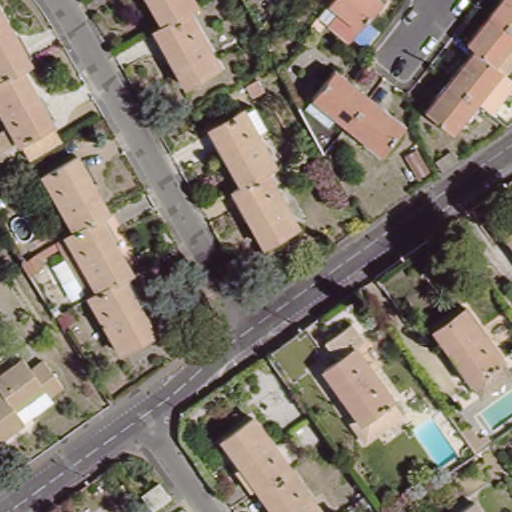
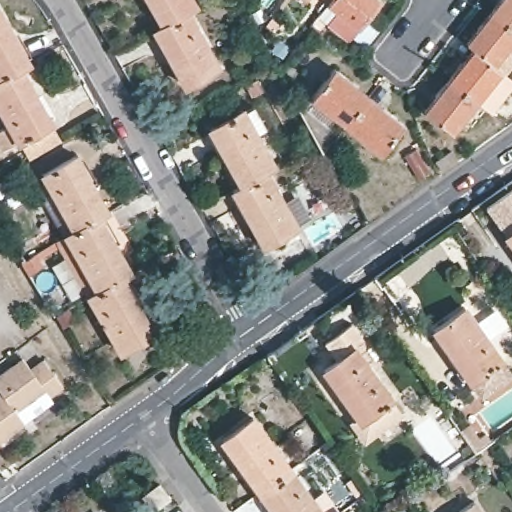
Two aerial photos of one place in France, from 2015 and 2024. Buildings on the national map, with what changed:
unchanged [(188,0),(194,10),(187,14),(160,28),(145,0),(188,0)]
unchanged [(330,0),(328,2),(325,0),(330,0)]
unchanged [(328,2),(330,0),(378,0),(379,0),(358,26),(350,37),(333,23),(342,13),(328,2)]
unchanged [(512,0),(512,25),(495,11),(504,0),(512,0)]
unchanged [(33,59),(24,64),(0,78),(0,2),(33,59)]
unchanged [(477,48),(470,42),(495,11),(512,25),(512,46),(498,65),(477,48)]
unchanged [(217,70),(180,90),(150,34),(160,28),(187,14),(217,70)]
unchanged [(498,65),(505,70),(480,100),(452,79),(477,48),(498,65)]
unchanged [(14,120),(0,95),(0,78),(24,64),(55,119),(25,137),(6,147),(0,137),(0,127),(14,120)]
unchanged [(311,99),(332,70),(367,95),(345,125),(311,99)]
unchanged [(452,79),(480,100),(457,130),(428,109),(452,79)]
unchanged [(345,125),(367,95),(402,123),(381,152),(345,125)]
unchanged [(213,125),(247,106),(277,160),(268,165),(243,179),(213,125)]
unchanged [(47,170),(79,150),(112,206),(103,211),(78,225),(47,170)]
unchanged [(267,240),(237,183),(243,179),(268,165),(300,222),(267,240)]
new [(485,206),(512,188),(512,230),(504,235),(485,206)]
unchanged [(122,274),(101,285),(70,230),(78,225),(103,211),(135,266),(122,274)]
unchanged [(512,230),(512,247),(504,235),(512,230)]
unchanged [(387,285),(427,256),(445,282),(405,311),(387,285)]
unchanged [(155,328),(125,346),(92,291),(101,285),(122,274),(155,328)]
unchanged [(500,368),(475,385),(430,320),(462,298),(497,350),(507,363),(500,368)]
unchanged [(404,408),(400,411),(367,434),(354,415),(359,412),(326,364),(340,354),(328,337),(355,318),(367,335),(357,343),(393,394),(397,400),(404,408)]
unchanged [(0,439),(0,392),(2,390),(0,387),(0,374),(25,357),(32,369),(45,360),(63,385),(49,395),(45,389),(15,410),(24,422),(0,439)]
unchanged [(217,440),(248,417),(286,470),(255,492),(217,440)]
unchanged [(490,443),(475,453),(460,430),(468,424),(478,437),(484,433),(491,442),(490,443)]
unchanged [(255,492),(286,470),(317,512),(269,512),(255,492)]
unchanged [(170,498),(153,509),(152,510),(142,495),(143,495),(160,482),(170,498)]
unchanged [(471,504),(475,501),(483,512),(459,512),(471,504)]

